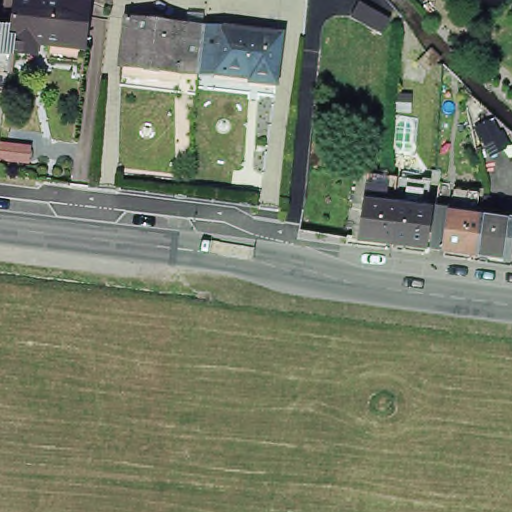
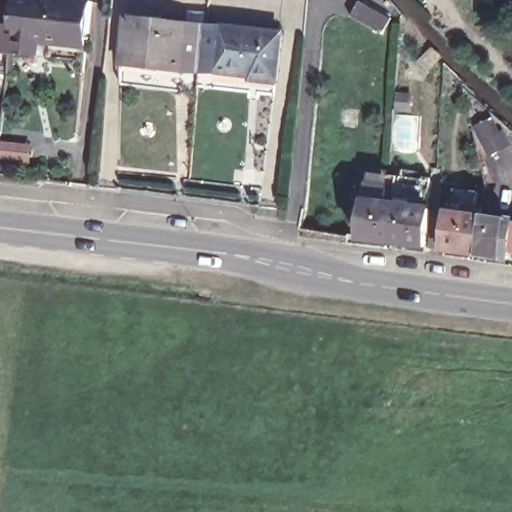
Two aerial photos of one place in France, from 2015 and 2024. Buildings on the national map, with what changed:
unchanged [(3,21),(18,23),(21,0),(98,0),(93,43),(45,38),(44,50),(18,48),(3,47),(2,59),(0,59),(0,3),(5,4),(3,21)]
unchanged [(389,20),(381,34),(351,17),(359,3),(389,20)]
unchanged [(252,84),(253,77),(216,73),(215,77),(200,76),(197,76),(182,74),(122,66),(128,17),(189,25),(204,27),(221,30),(284,37),(279,87),(252,84)]
unchanged [(428,52),(438,61),(428,71),(419,62),(428,52)]
unchanged [(29,166),(0,162),(0,146),(0,142),(32,147),(29,166)]
unchanged [(432,248),(398,244),(364,240),(369,202),(390,205),(391,200),(402,201),(404,187),(394,186),(395,176),(405,177),(437,181),(433,211),(436,211),(432,248)]
unchanged [(483,255),(466,252),(450,250),(447,250),(435,249),(438,231),(441,206),(451,207),(455,207),(454,213),(487,217),(483,255)]
unchanged [(483,255),(487,217),(512,221),(512,259),(483,255)]

